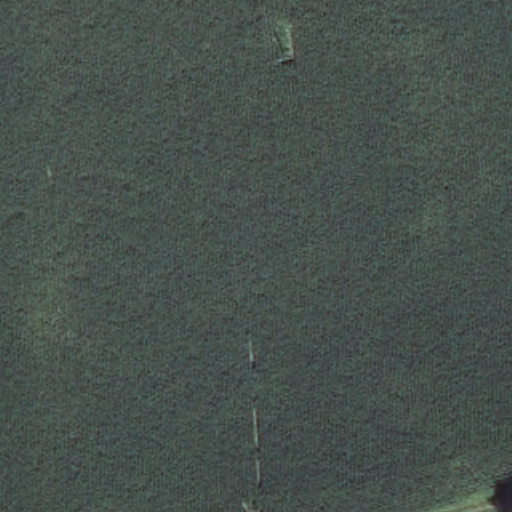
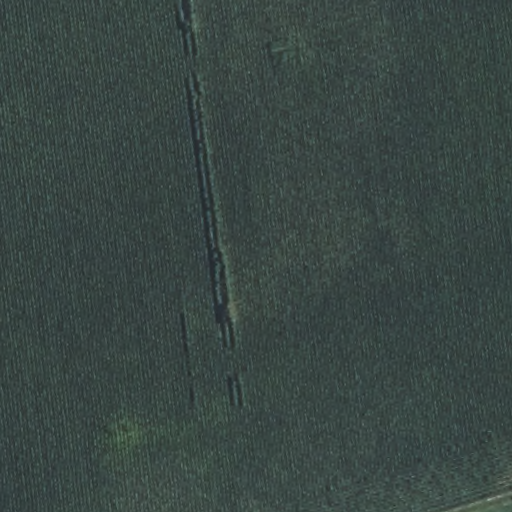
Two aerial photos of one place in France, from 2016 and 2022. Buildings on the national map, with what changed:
[]

